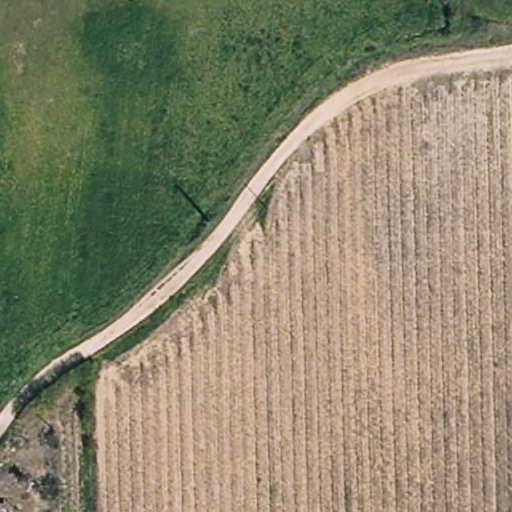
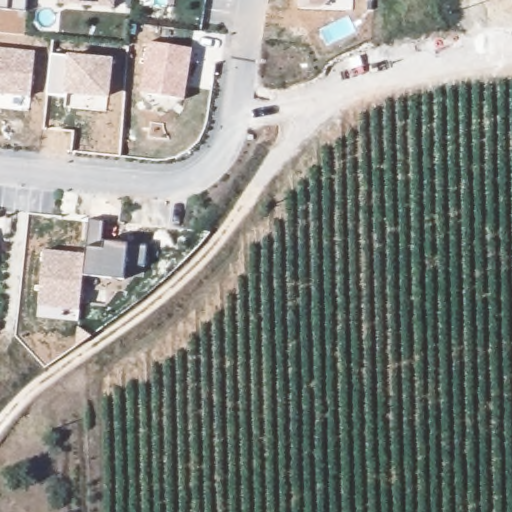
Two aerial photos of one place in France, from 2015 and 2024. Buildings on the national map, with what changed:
new [(10,10),(0,9),(0,0),(28,0),(27,12),(10,10)]
new [(60,5),(60,0),(115,0),(115,8),(60,5)]
new [(194,48),(186,100),(141,94),(149,42),(194,48)]
new [(31,97),(0,94),(0,49),(35,51),(31,97)]
new [(67,57),(68,54),(113,58),(110,97),(68,94),(67,97),(47,95),(51,55),(67,57)]
new [(85,257),(87,247),(90,221),(104,222),(104,241),(128,244),(147,247),(145,265),(126,262),(124,280),(83,277),(80,311),(38,307),(44,251),(85,257)]

